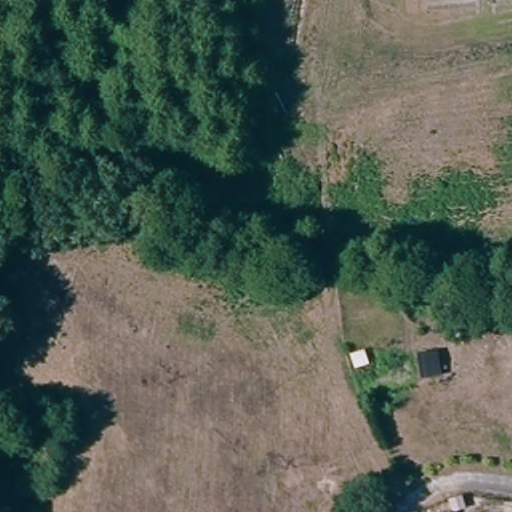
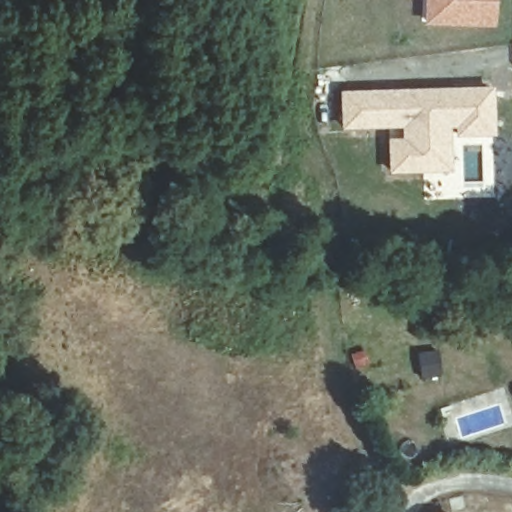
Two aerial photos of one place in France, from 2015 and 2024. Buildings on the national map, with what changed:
new [(422,25),(422,0),(494,0),(491,29),(422,25)]
new [(385,173),(385,143),(399,143),(399,125),(391,126),(342,126),(341,94),(391,93),(446,92),(487,91),(487,134),(453,134),(453,125),(442,125),(442,136),(443,171),(418,171),(385,173)]
unchanged [(467,505),(456,509),(452,498),(464,494),(467,505)]
unchanged [(449,512),(445,512),(449,511),(449,512)]

